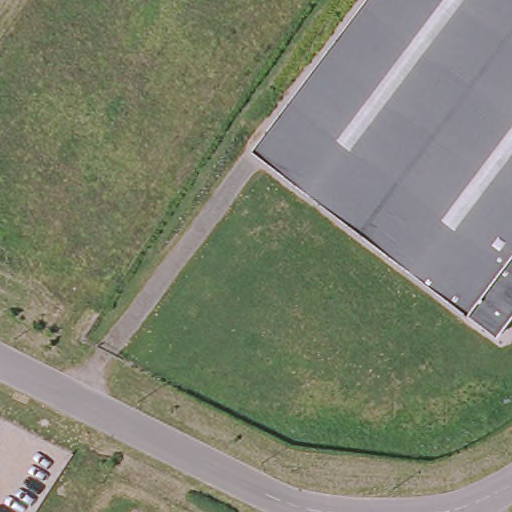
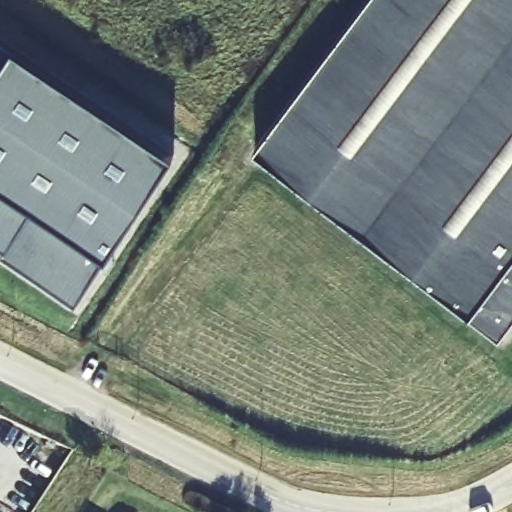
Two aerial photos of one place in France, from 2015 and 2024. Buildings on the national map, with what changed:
unchanged [(498,335),(252,150),(365,0),(512,0),(512,317),(498,335)]
new [(0,38),(175,153),(76,302),(1,253),(5,247),(0,245),(0,38)]

